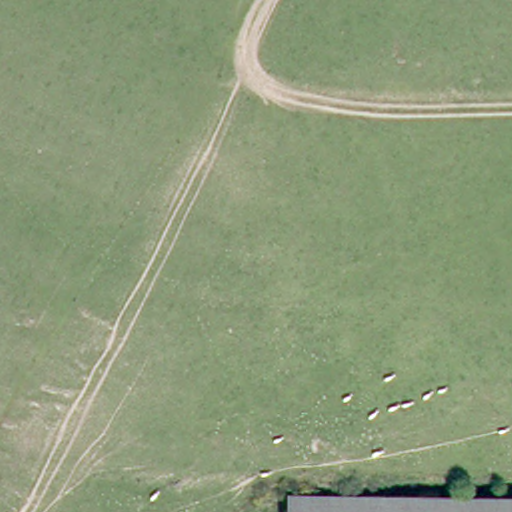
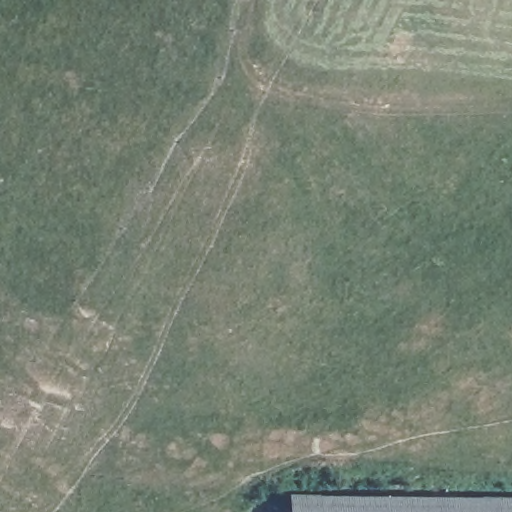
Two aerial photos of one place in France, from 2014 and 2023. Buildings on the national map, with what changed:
unchanged [(289,501),(512,502),(512,512),(289,512),(289,501)]

